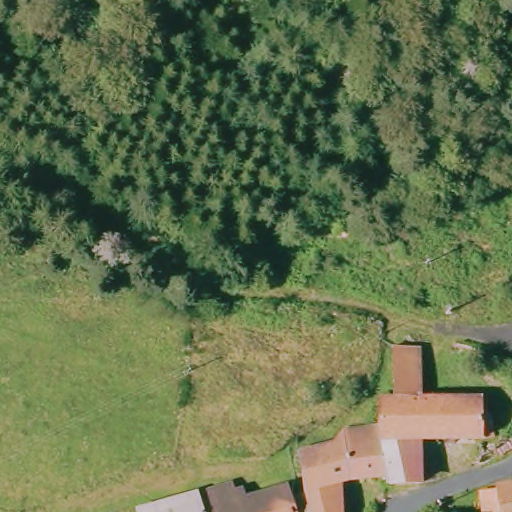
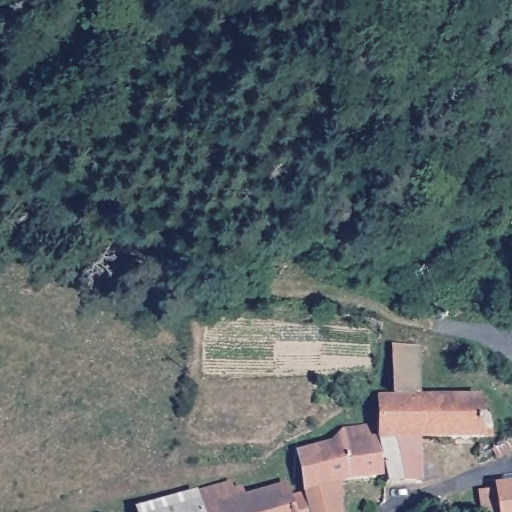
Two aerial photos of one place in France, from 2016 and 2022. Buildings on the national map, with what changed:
unchanged [(416,350),(417,404),(482,401),(483,417),(493,417),(493,445),(417,445),(417,489),(410,492),(388,492),(387,479),(379,433),(378,405),(391,405),(393,350),(416,350)]
unchanged [(297,460),(343,447),(344,437),(379,433),(387,479),(339,485),(339,512),(308,512),(306,499),(297,460)]
unchanged [(229,488),(234,504),(282,490),(287,505),(299,501),(306,499),(308,512),(198,512),(194,498),(229,488)]
unchanged [(496,489),(512,488),(512,512),(484,512),(483,490),(496,489)]
unchanged [(198,512),(147,512),(194,498),(198,512)]

